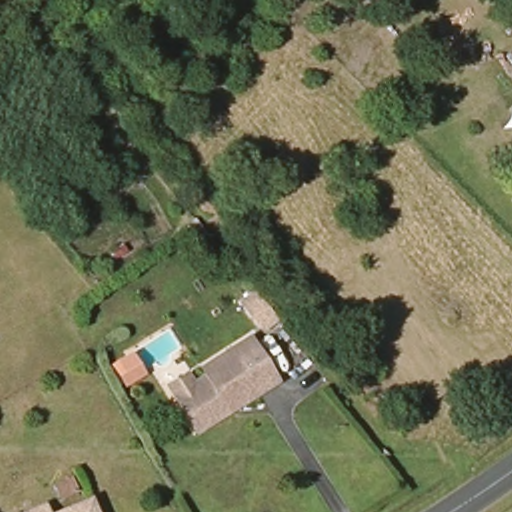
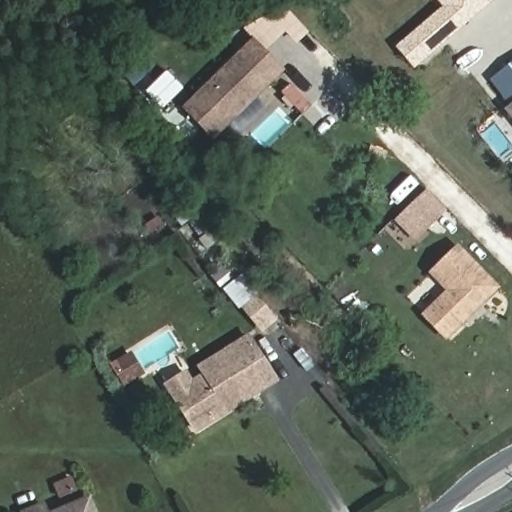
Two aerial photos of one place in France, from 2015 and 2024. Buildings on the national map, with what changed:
new [(252,37),(244,29),(274,0),(276,0),(309,33),(297,44),(285,32),(267,49),(253,36),(252,37)]
new [(395,47),(442,6),(436,0),(493,0),(414,69),(395,47)]
new [(161,17),(179,36),(160,53),(143,34),(161,17)]
new [(213,140),(181,106),(253,36),(285,69),(213,140)]
unchanged [(503,53),(512,45),(512,65),(503,53)]
unchanged [(510,113),(512,111),(512,115),(510,113)]
new [(394,220),(426,189),(447,210),(414,242),(394,220)]
new [(447,341),(420,314),(444,290),(428,272),(457,244),(499,286),(447,341)]
unchanged [(277,315),(264,327),(243,303),(255,292),(277,315)]
unchanged [(197,428),(177,396),(169,382),(189,369),(197,384),(210,375),(205,367),(250,339),(275,379),(197,428)]
unchanged [(91,457),(98,469),(81,476),(76,462),(91,457)]
unchanged [(45,504),(49,512),(25,512),(45,504)]
unchanged [(99,512),(75,512),(96,504),(99,512)]

